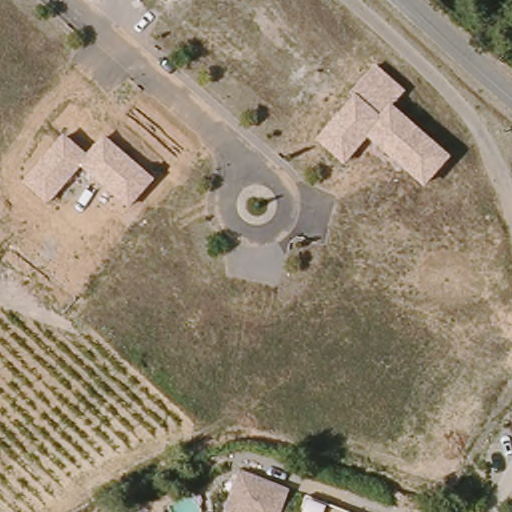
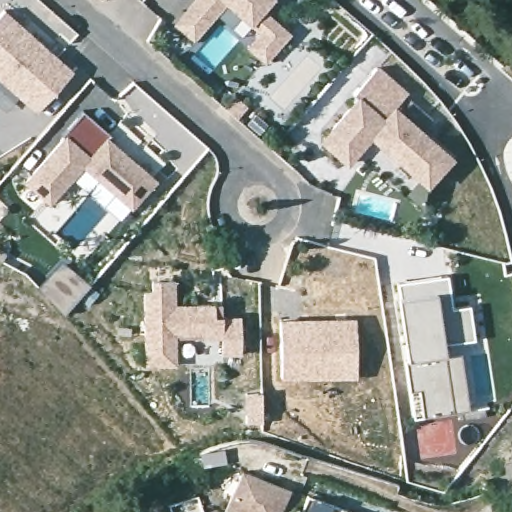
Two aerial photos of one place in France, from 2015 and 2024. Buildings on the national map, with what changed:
unchanged [(182,29),(207,0),(277,0),(280,3),(270,16),(296,39),(272,68),(254,52),(267,38),(248,22),(238,33),(223,20),(232,8),(200,46),(182,29)]
new [(73,69),(38,112),(0,80),(0,13),(3,10),(73,69)]
unchanged [(427,188),(370,139),(347,167),(319,142),(357,96),(352,93),(377,65),(407,92),(395,107),(454,157),(427,188)]
new [(62,133),(83,109),(110,134),(107,138),(106,137),(88,156),(65,135),(62,133)]
unchanged [(130,209),(82,168),(48,206),(23,183),(65,135),(88,156),(106,137),(107,138),(157,180),(130,209)]
new [(299,302),(303,251),(325,255),(322,303),(299,302)]
new [(447,275),(452,307),(469,306),(473,337),(444,342),(446,354),(460,352),(469,408),(425,415),(420,388),(410,390),(405,360),(409,360),(400,299),(398,283),(447,275)]
new [(155,291),(155,279),(177,279),(177,305),(216,305),(223,305),(223,318),(215,318),(242,318),(241,356),(222,355),(222,338),(204,338),(205,335),(176,334),(175,365),(145,364),(147,291),(155,291)]
new [(356,317),(357,377),(282,380),(279,318),(356,317)]
new [(262,393),(263,427),(247,427),(245,393),(262,393)]
unchanged [(276,512),(222,512),(238,472),(285,490),(276,512)]

